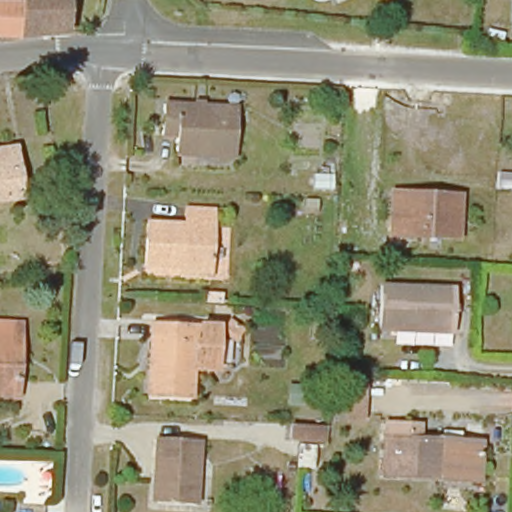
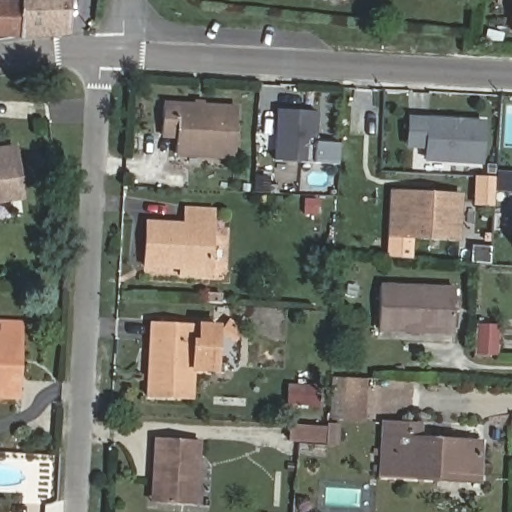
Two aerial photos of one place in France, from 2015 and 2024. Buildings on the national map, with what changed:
unchanged [(22,17),(0,16),(0,0),(66,0),(63,41),(19,46),(20,44),(22,17)]
unchanged [(22,17),(20,44),(0,43),(0,16),(22,17)]
unchanged [(237,150),(178,148),(179,135),(166,134),(167,104),(239,106),(237,150)]
new [(282,109),(321,112),(317,164),(278,160),(282,109)]
new [(425,149),(405,147),(407,115),(486,119),(482,164),(424,161),(425,149)]
unchanged [(19,146),(27,199),(0,203),(0,149),(19,146)]
unchanged [(392,240),(394,194),(421,195),(462,198),(462,210),(461,245),(392,240)]
unchanged [(180,274),(180,265),(156,264),(157,223),(195,224),(196,209),(213,210),(211,266),(211,275),(180,274)]
unchanged [(453,335),(376,331),(377,287),(456,291),(453,335)]
new [(483,325),(503,326),(501,355),(481,355),(483,325)]
unchanged [(17,398),(0,398),(0,326),(19,327),(19,341),(17,360),(17,382),(17,398)]
unchanged [(200,343),(195,343),(193,403),(152,401),(154,330),(200,332),(200,343)]
unchanged [(328,418),(330,375),(363,375),(361,420),(328,418)]
unchanged [(327,442),(315,442),(313,467),(296,468),(297,440),(287,440),(287,422),(323,425),(327,442)]
unchanged [(408,426),(407,440),(407,478),(383,477),(385,425),(408,426)]
unchanged [(441,480),(407,478),(407,440),(481,442),(481,471),(480,482),(441,480)]
unchanged [(156,476),(158,443),(201,445),(197,510),(162,507),(155,507),(156,476)]

